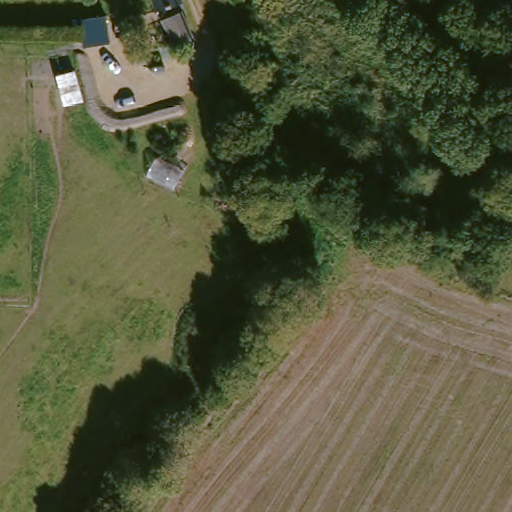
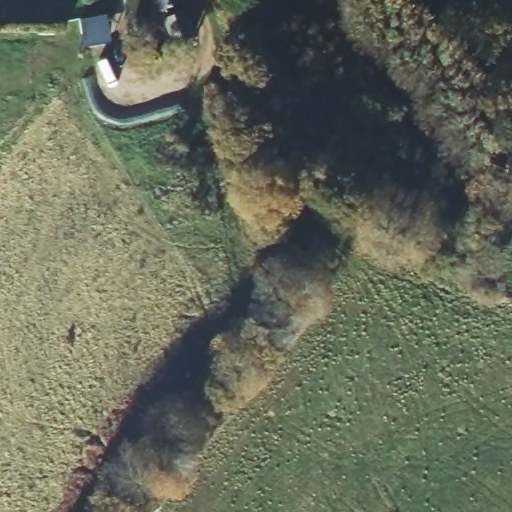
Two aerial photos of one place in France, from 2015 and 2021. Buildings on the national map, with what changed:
unchanged [(152,10),(149,0),(180,0),(180,1),(152,10)]
unchanged [(178,12),(189,36),(171,44),(160,20),(178,12)]

